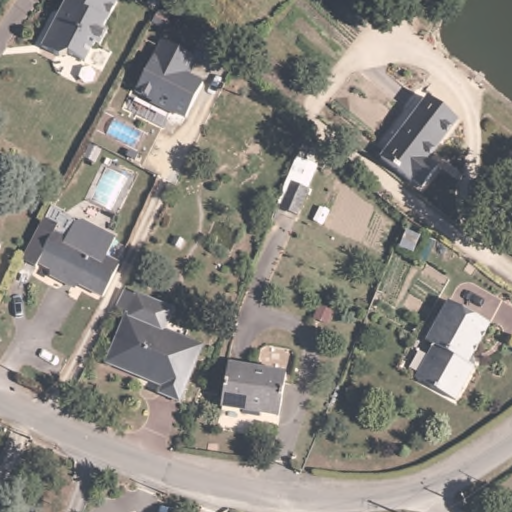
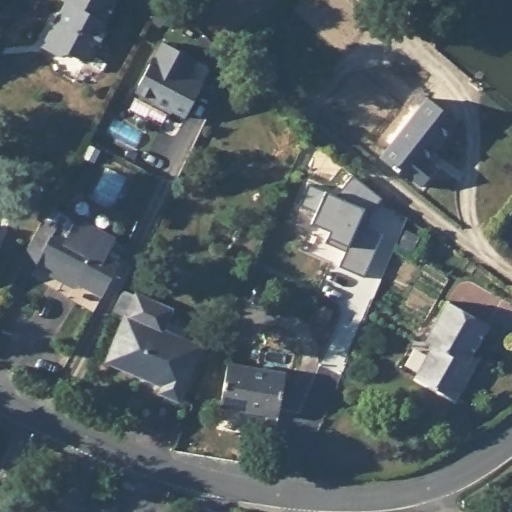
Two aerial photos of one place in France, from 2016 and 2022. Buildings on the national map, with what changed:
unchanged [(120,5),(105,32),(109,34),(101,48),(97,46),(87,65),(70,55),(61,58),(44,49),(68,4),(64,2),(64,0),(111,0),(120,5)]
unchanged [(162,38),(197,59),(190,75),(205,81),(186,118),(134,92),(162,38)]
unchanged [(455,120),(426,158),(439,167),(422,189),(412,181),(408,185),(373,160),(418,94),(455,120)]
new [(308,184),(336,196),(353,175),(382,199),(372,212),(365,228),(383,235),(365,278),(339,267),(345,252),(325,243),(330,232),(311,224),(316,214),(298,206),(308,184)]
unchanged [(65,284),(52,276),(55,271),(44,265),(40,270),(26,262),(49,220),(64,228),(60,234),(72,241),(80,227),(86,225),(98,231),(100,238),(107,242),(110,238),(120,243),(110,262),(124,269),(107,301),(106,301),(79,284),(68,279),(65,284)]
unchanged [(164,304),(152,326),(194,348),(167,396),(150,386),(154,381),(102,352),(125,310),(119,307),(130,287),(152,298),(164,304)]
unchanged [(425,344),(449,306),(479,323),(488,328),(468,364),(473,368),(454,401),(444,395),(413,379),(432,349),(425,344)]
unchanged [(225,359),(282,368),(275,411),(218,402),(225,359)]

